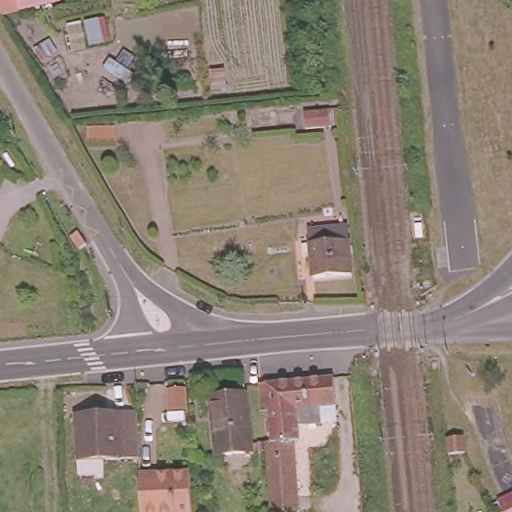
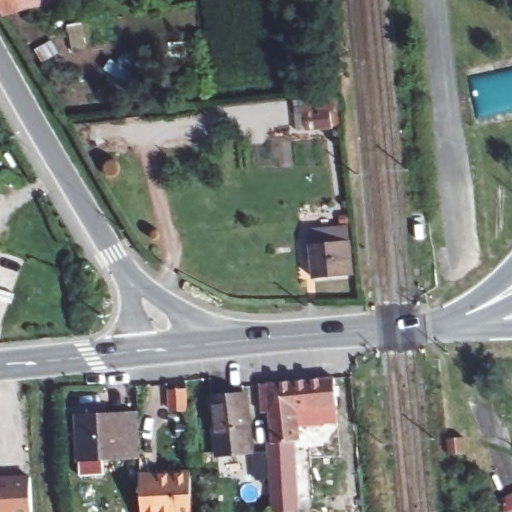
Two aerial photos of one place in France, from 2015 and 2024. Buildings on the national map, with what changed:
unchanged [(48,0),(0,12),(0,0),(48,0)]
unchanged [(327,127),(302,130),(301,114),(326,112),(327,127)]
unchanged [(344,222),(348,252),(349,252),(351,275),(313,279),(309,257),(305,257),(302,244),(306,242),(304,227),(344,222)]
unchanged [(258,380),(333,374),(334,401),(319,402),(321,421),(300,422),(301,441),(294,441),(297,503),(294,507),(283,507),(284,512),(271,512),(266,437),(269,437),(267,409),(260,409),(258,380)]
unchanged [(186,412),(167,414),(166,393),(186,392),(186,412)]
unchanged [(243,392),(247,451),(212,453),(209,396),(243,392)]
unchanged [(76,472),(76,458),(75,413),(95,413),(99,409),(137,407),(140,457),(108,457),(108,472),(76,472)]
unchanged [(365,512),(338,512),(336,492),(338,492),(334,448),(359,446),(365,512)]
unchanged [(190,461),(193,512),(144,512),(141,463),(190,461)]
new [(25,475),(26,512),(0,512),(0,476),(25,475)]
new [(512,512),(505,512),(499,500),(512,493),(512,512)]

